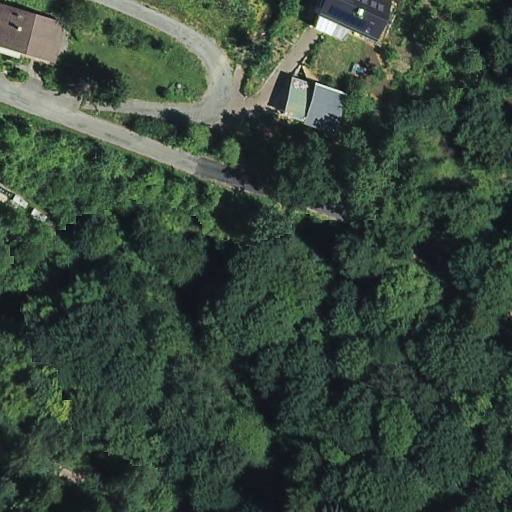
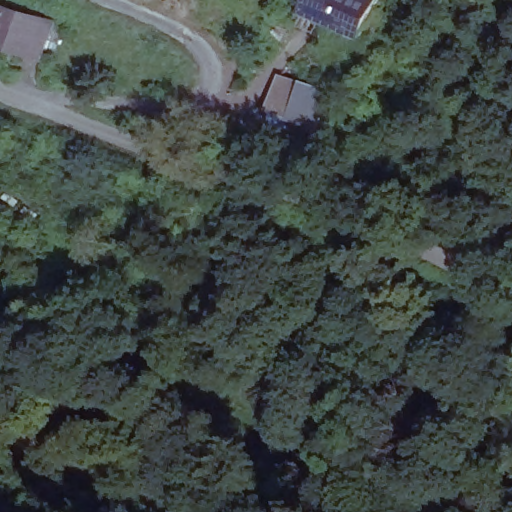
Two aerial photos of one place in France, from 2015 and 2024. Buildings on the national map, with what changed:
unchanged [(302,14),(308,0),(367,0),(373,2),(357,39),(302,14)]
unchanged [(42,55),(0,43),(0,6),(52,21),(42,55)]
unchanged [(342,93),(330,116),(289,106),(299,84),(342,93)]

